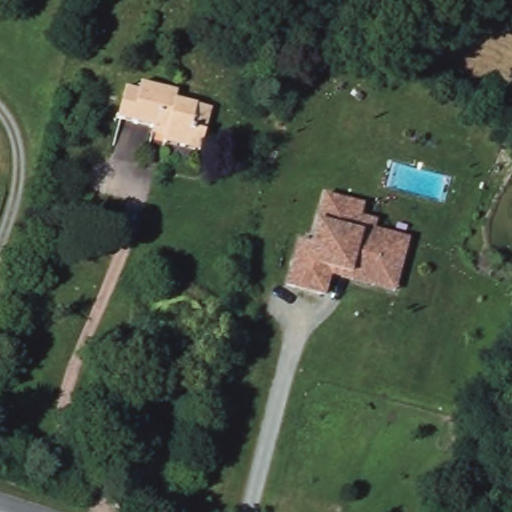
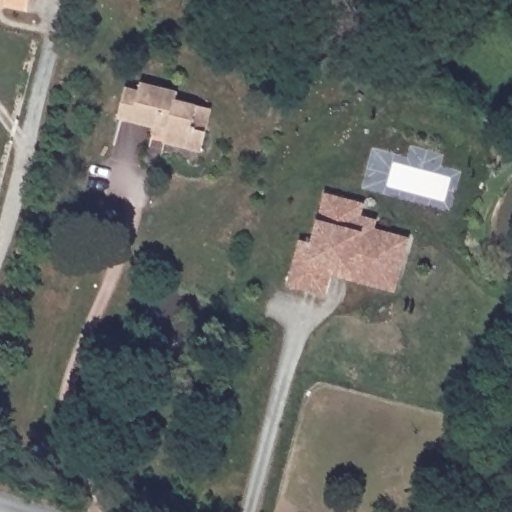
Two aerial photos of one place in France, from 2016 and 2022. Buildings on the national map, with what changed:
new [(6,6),(0,5),(0,0),(29,0),(27,11),(6,6)]
unchanged [(154,127),(118,118),(125,87),(139,91),(141,83),(178,91),(176,100),(197,105),(211,109),(206,131),(200,151),(163,142),(165,136),(152,134),(154,127)]
unchanged [(301,238),(313,240),(317,218),(325,192),(365,201),(362,211),(378,214),(375,225),(410,233),(396,287),(331,274),(327,290),(289,284),(301,238)]

